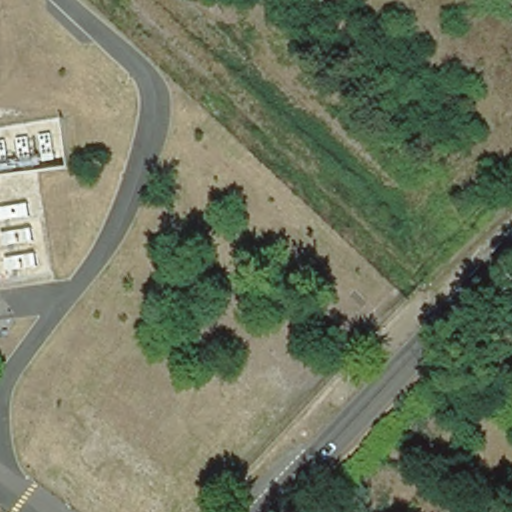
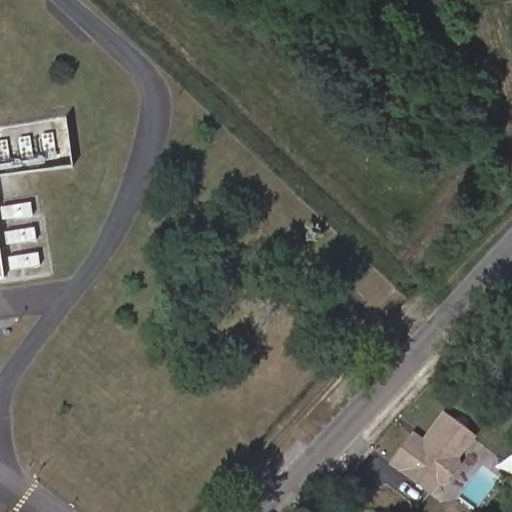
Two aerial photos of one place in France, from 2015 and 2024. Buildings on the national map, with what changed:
unchanged [(0,281),(0,258),(4,280),(0,281)]
new [(460,458),(462,465),(445,486),(442,483),(431,495),(389,465),(413,432),(423,439),(443,412),(476,436),(460,458)]

